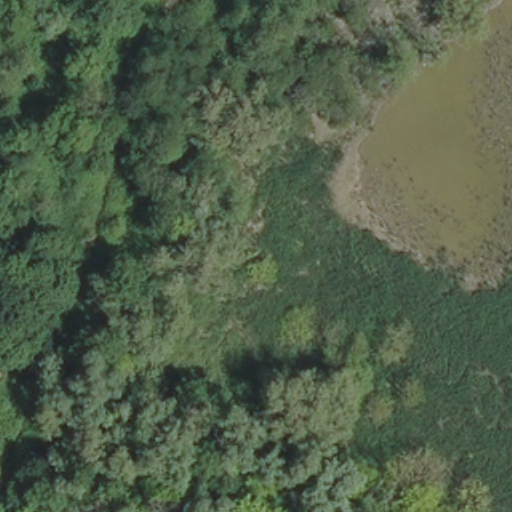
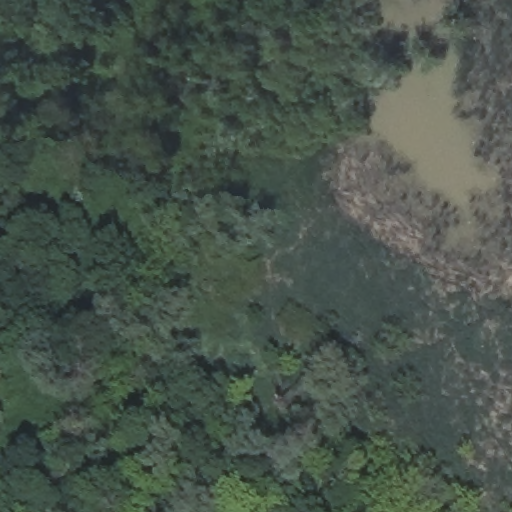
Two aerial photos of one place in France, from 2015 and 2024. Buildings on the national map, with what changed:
unchanged [(451,49),(440,37),(453,24),(465,35),(451,49)]

